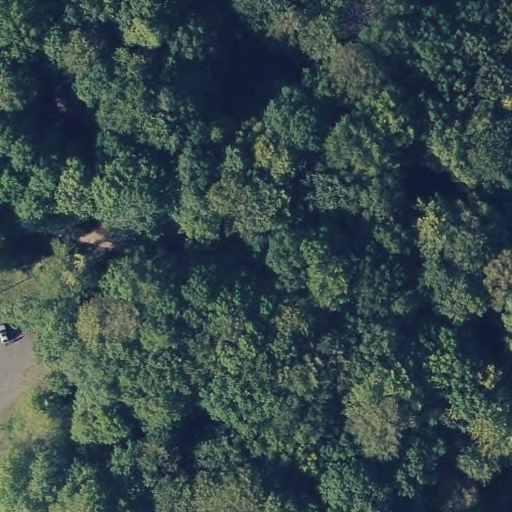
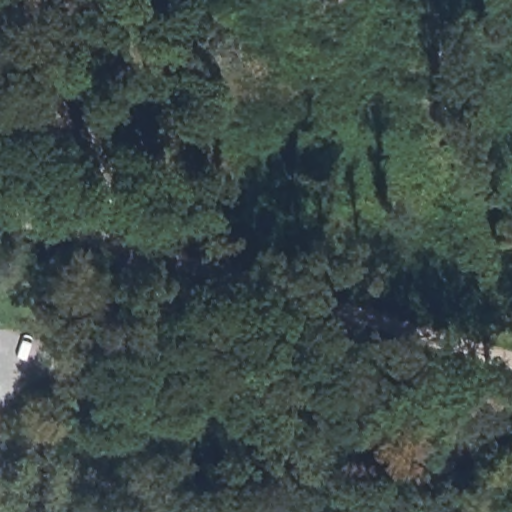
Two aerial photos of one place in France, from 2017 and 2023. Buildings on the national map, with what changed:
[]

